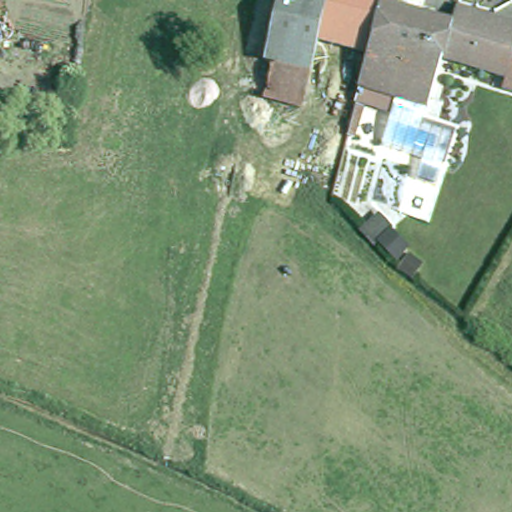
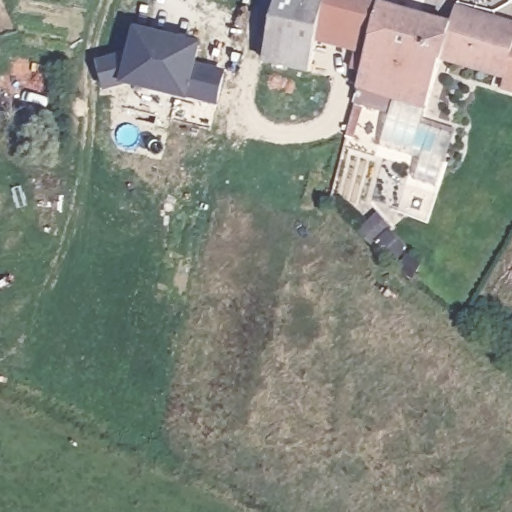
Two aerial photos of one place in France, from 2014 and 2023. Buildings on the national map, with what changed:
unchanged [(267,59),(261,57),(266,30),(269,15),(259,12),(261,0),(272,0),(357,0),(371,5),(369,19),(364,54),(314,41),(309,68),(267,59)]
unchanged [(422,108),(391,100),(386,115),(352,104),(354,95),(361,75),(364,54),(369,19),(371,5),(398,12),(445,27),(450,10),(476,18),(470,35),(472,35),(452,70),(434,65),(422,108)]
unchanged [(452,70),(472,35),(481,20),(509,27),(504,45),(512,47),(512,60),(499,83),(452,70)]
new [(189,100),(125,85),(103,90),(96,61),(128,51),(134,26),(203,42),(198,65),(226,71),(218,107),(189,100)]
unchanged [(350,111),(356,112),(346,144),(341,142),(350,111)]

